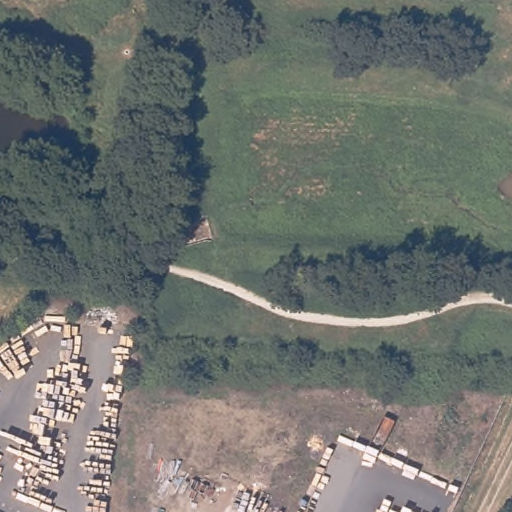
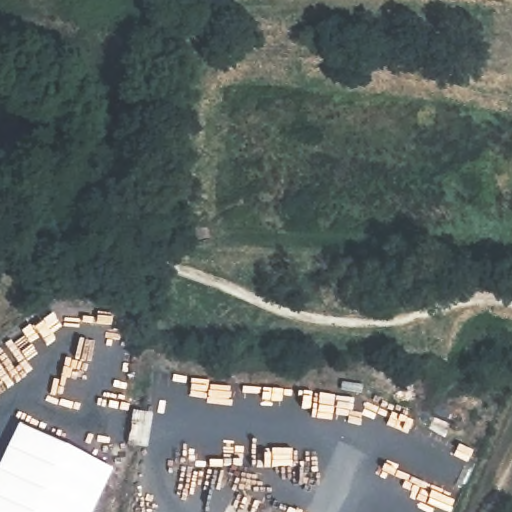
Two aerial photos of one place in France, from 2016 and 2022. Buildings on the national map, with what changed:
new [(113,468),(92,512),(0,512),(0,462),(18,422),(113,468)]

